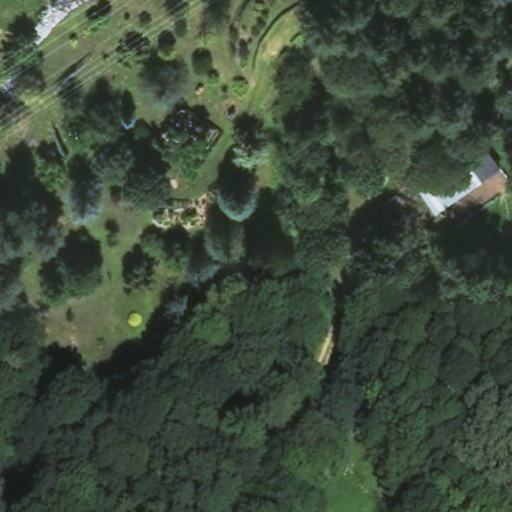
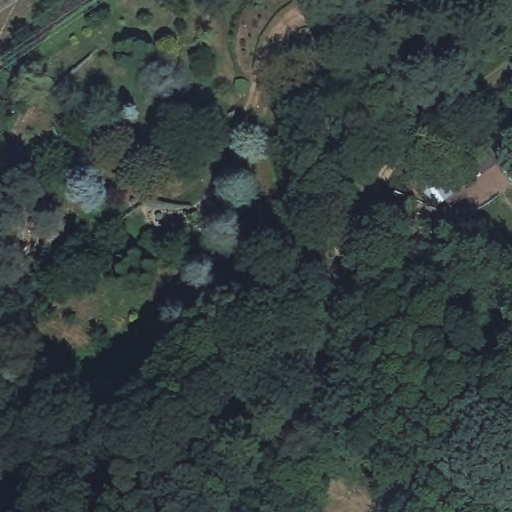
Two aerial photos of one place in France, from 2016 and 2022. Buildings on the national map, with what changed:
unchanged [(419,185),(467,156),(479,182),(435,213),(419,185)]

